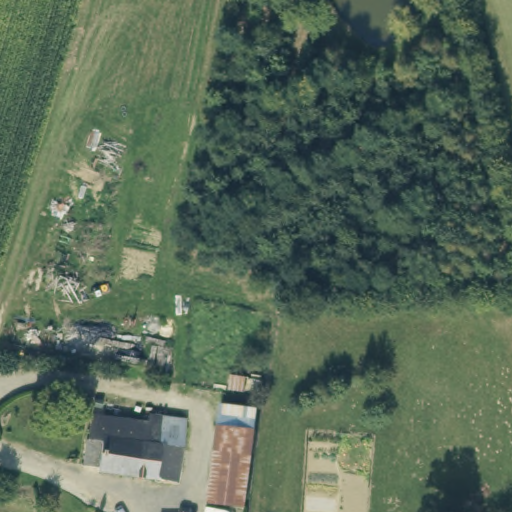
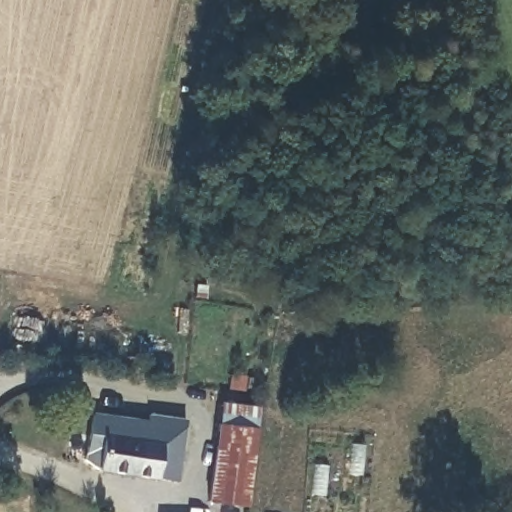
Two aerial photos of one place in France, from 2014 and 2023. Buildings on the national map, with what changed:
unchanged [(244,510),(210,506),(218,430),(220,412),(255,416),(251,435),(244,510)]
unchanged [(88,446),(91,419),(148,428),(149,419),(186,426),(182,454),(176,489),(157,486),(96,477),(98,471),(84,469),(88,446)]

